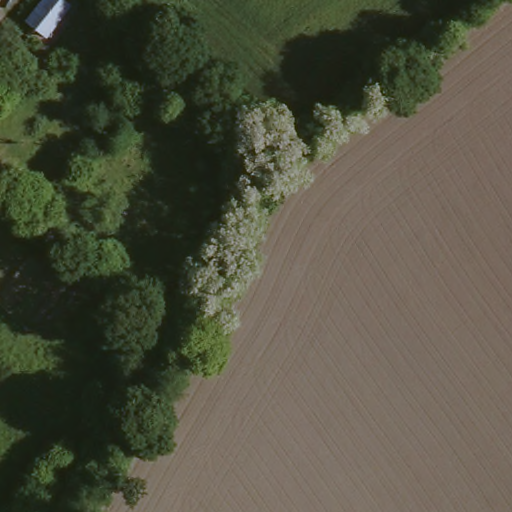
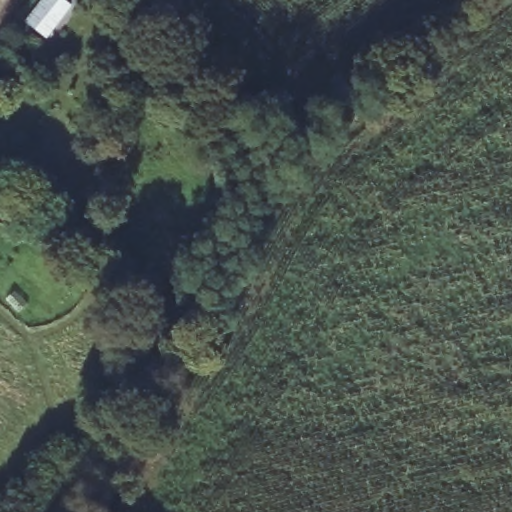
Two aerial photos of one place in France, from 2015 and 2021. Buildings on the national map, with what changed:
unchanged [(47,0),(54,0),(68,12),(40,40),(24,22),(47,0)]

